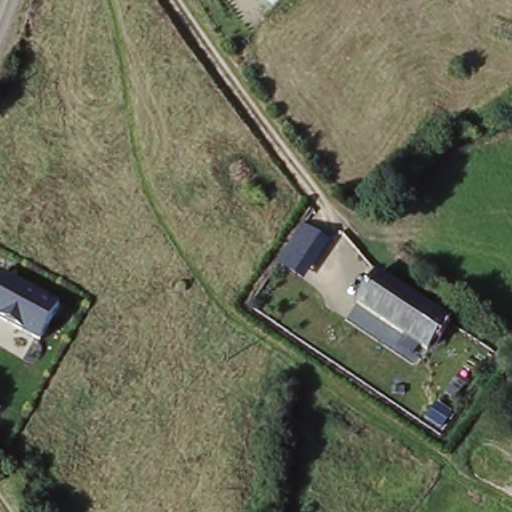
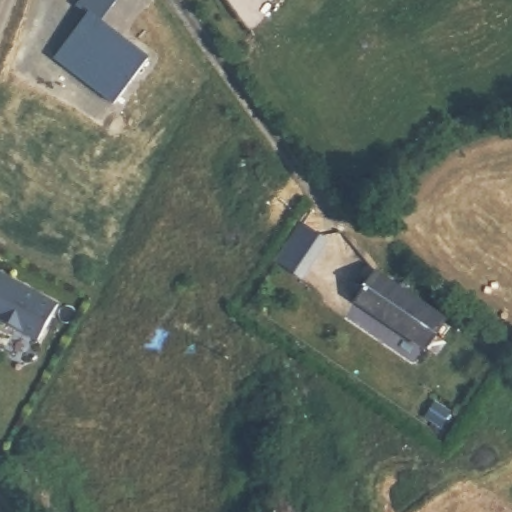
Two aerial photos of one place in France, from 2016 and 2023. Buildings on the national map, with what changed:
new [(87,17),(75,9),(82,0),(118,0),(99,25),(148,62),(115,106),(54,61),(87,17)]
new [(301,224),(326,240),(302,280),(276,263),(301,224)]
unchanged [(41,342),(0,319),(0,275),(2,270),(60,304),(41,342)]
unchanged [(377,270),(447,317),(429,349),(360,300),(377,270)]

